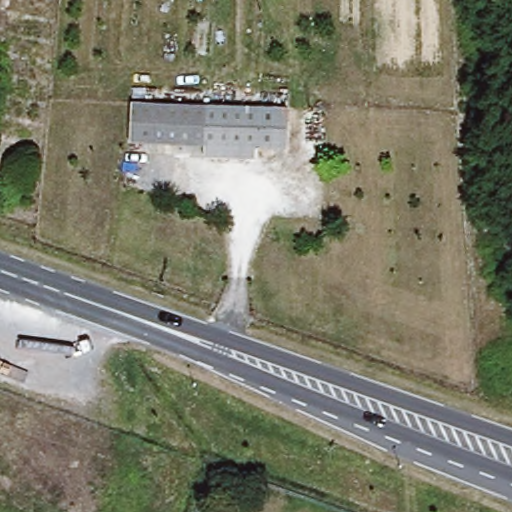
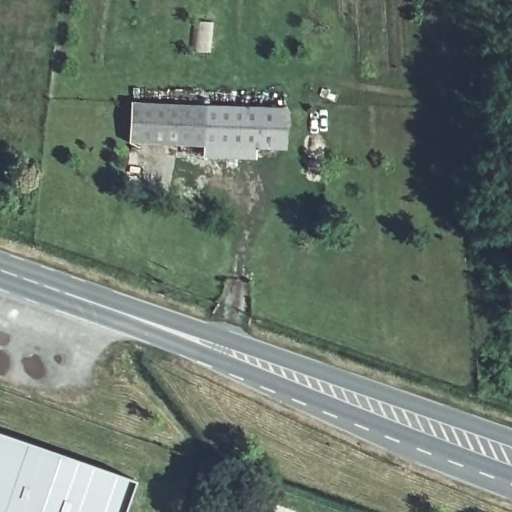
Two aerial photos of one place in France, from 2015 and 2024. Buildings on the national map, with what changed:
unchanged [(202,156),(203,145),(128,142),(129,104),(235,106),(233,157),(202,156)]
unchanged [(252,145),(252,159),(233,157),(235,106),(282,107),(281,146),(252,145)]
new [(133,478),(122,512),(0,512),(0,434),(133,478)]

